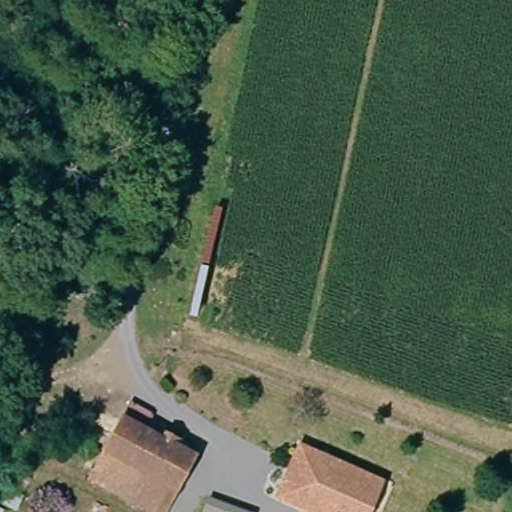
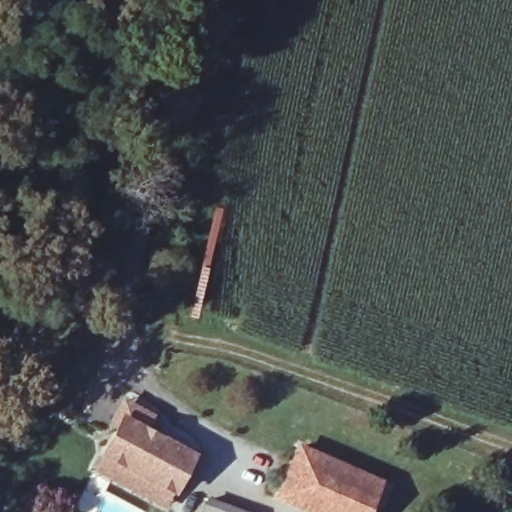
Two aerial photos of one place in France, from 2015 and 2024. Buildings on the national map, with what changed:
unchanged [(160,414),(155,428),(202,454),(178,490),(166,512),(144,512),(85,482),(103,453),(121,417),(130,400),(160,414)]
unchanged [(367,512),(313,512),(283,496),(306,447),(382,481),(367,512)]
unchanged [(242,512),(208,512),(215,497),(242,512)]

